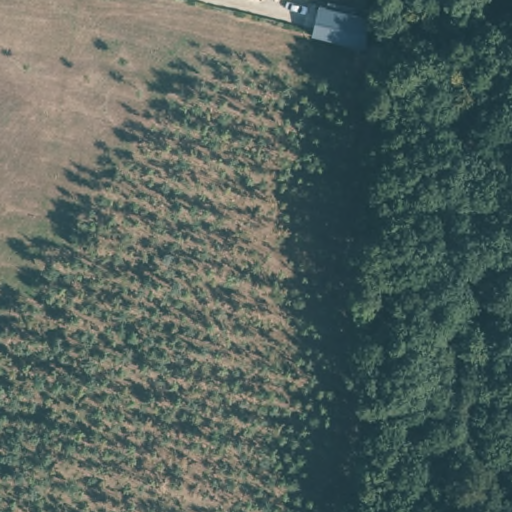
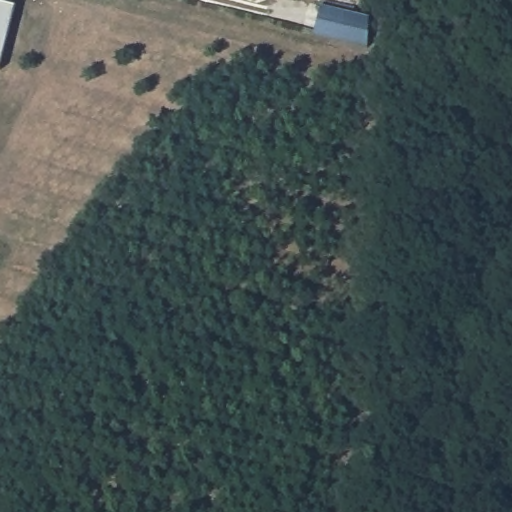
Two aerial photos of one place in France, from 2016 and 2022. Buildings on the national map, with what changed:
new [(0,63),(0,2),(15,5),(0,63)]
unchanged [(319,5),(366,15),(358,45),(312,32),(319,5)]

